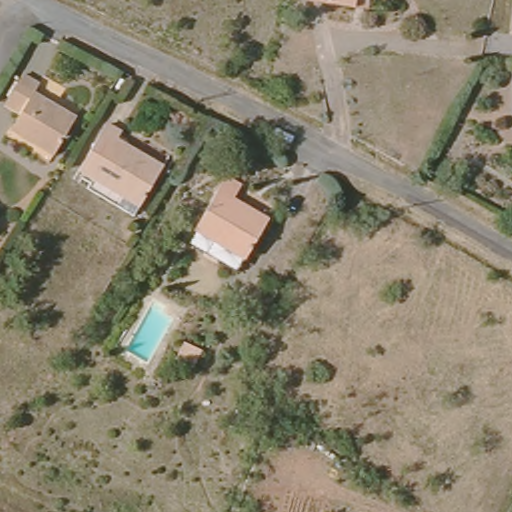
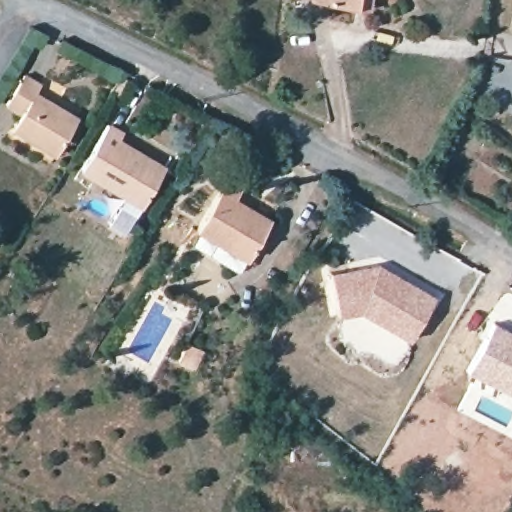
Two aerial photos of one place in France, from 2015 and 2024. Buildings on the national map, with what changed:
unchanged [(353,10),(309,5),(295,1),(295,0),(365,0),(364,12),(353,10)]
unchanged [(52,155),(8,132),(17,116),(3,109),(22,77),(37,86),(32,95),(72,116),(52,155)]
unchanged [(168,165),(147,201),(98,176),(84,169),(110,122),(126,131),(120,141),(168,165)]
unchanged [(188,242),(196,227),(220,186),(272,215),(250,257),(242,271),(188,242)]
new [(435,295),(409,340),(360,312),(338,315),(331,270),(377,262),(435,295)]
new [(452,358),(479,310),(512,330),(512,392),(506,388),(452,358)]
unchanged [(203,351),(193,368),(178,360),(188,342),(203,351)]

